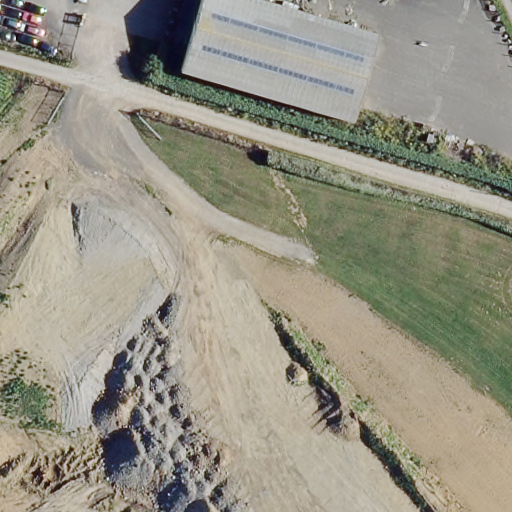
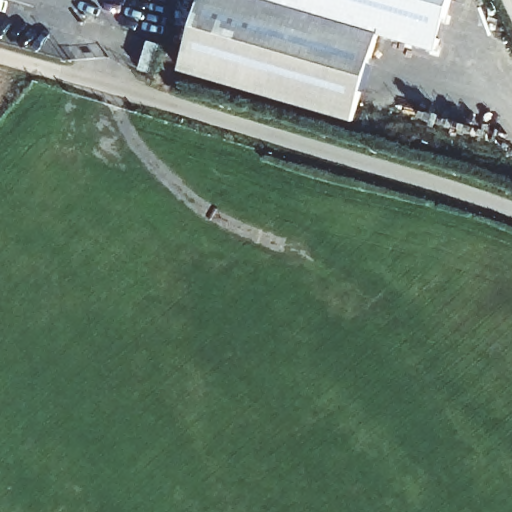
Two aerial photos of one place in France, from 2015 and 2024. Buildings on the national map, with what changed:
unchanged [(260,0),(375,29),(352,116),(178,72),(196,0),(260,0)]
new [(374,33),(375,29),(260,0),(451,0),(435,51),(374,33)]

